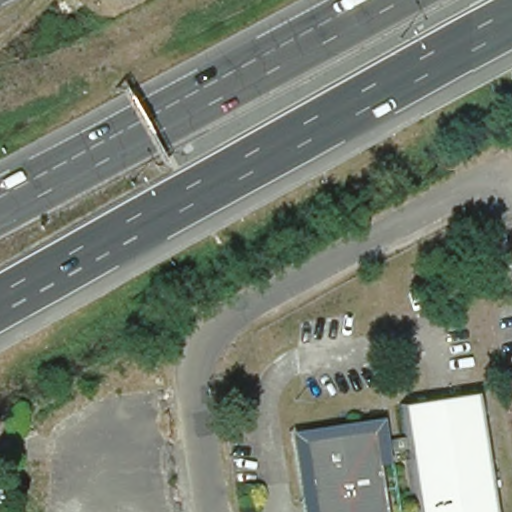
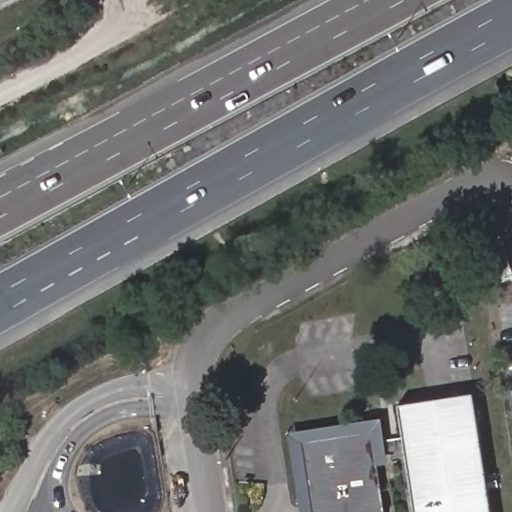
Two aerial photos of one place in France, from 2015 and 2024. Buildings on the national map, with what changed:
unchanged [(499,231),(512,276),(502,280),(489,234),(499,231)]
unchanged [(470,393),(489,512),(413,512),(396,405),(470,393)]
unchanged [(378,419),(393,512),(299,512),(286,433),(378,419)]

